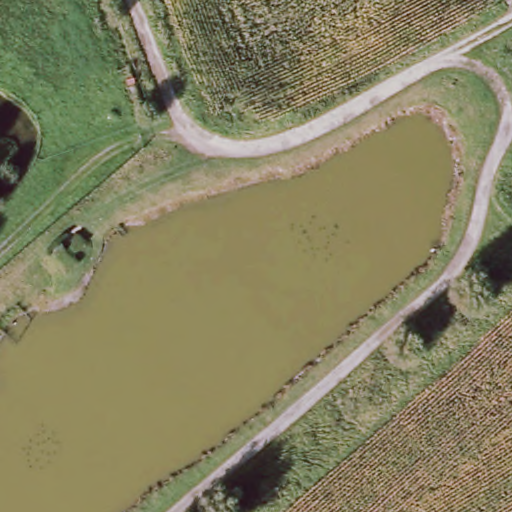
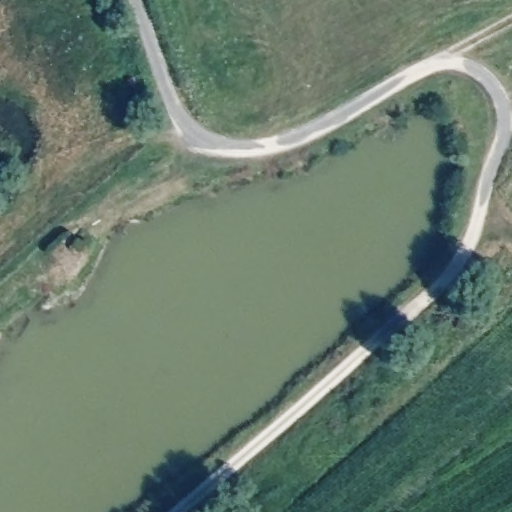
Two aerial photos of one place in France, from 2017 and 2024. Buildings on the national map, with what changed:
[]

